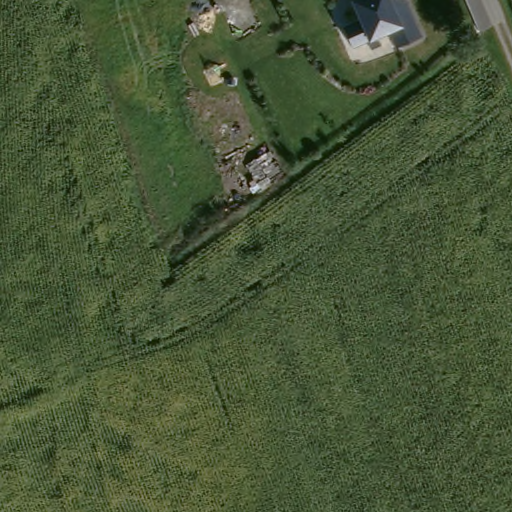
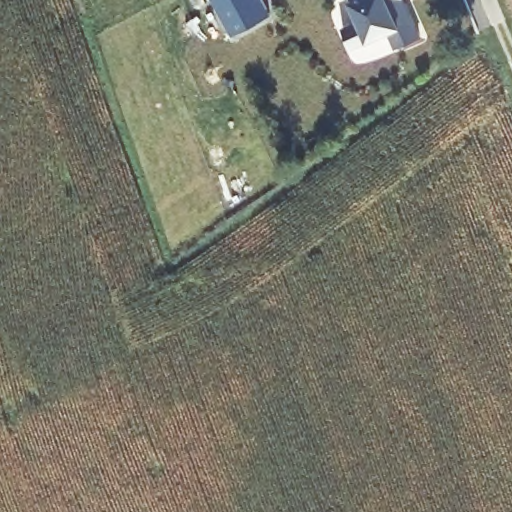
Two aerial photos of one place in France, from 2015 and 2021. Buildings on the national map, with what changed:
new [(264,0),(271,14),(235,33),(217,0),(264,0)]
unchanged [(392,51),(385,31),(343,46),(339,32),(357,26),(347,0),(402,0),(420,41),(392,51)]

